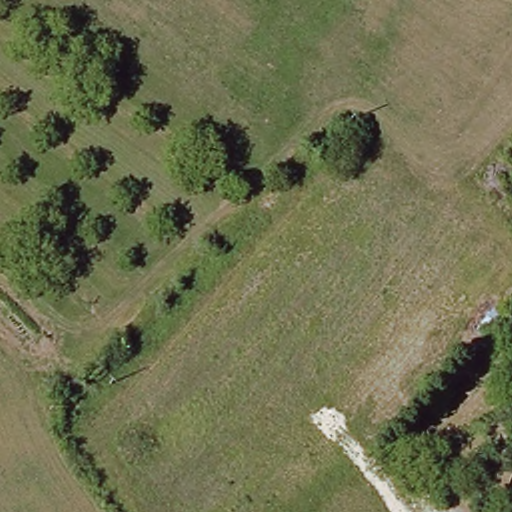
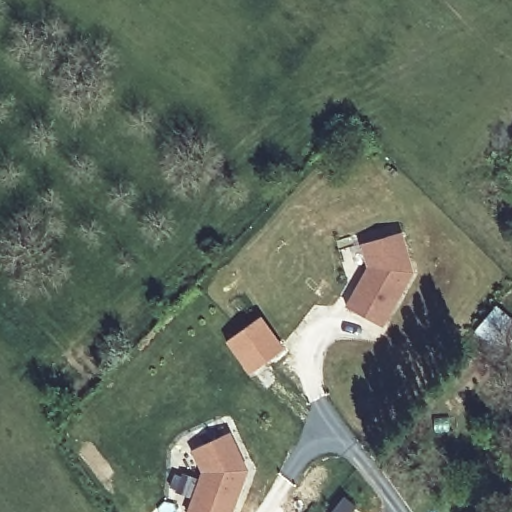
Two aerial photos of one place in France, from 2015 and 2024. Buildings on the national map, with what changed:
new [(403,233),(414,271),(383,328),(345,305),(366,266),(361,246),(403,233)]
new [(512,324),(512,338),(505,331),(492,345),(475,328),(495,307),(512,324)]
new [(260,316),(282,350),(248,373),(225,341),(260,316)]
new [(248,470),(234,512),(187,512),(200,473),(190,451),(231,432),(248,470)]

